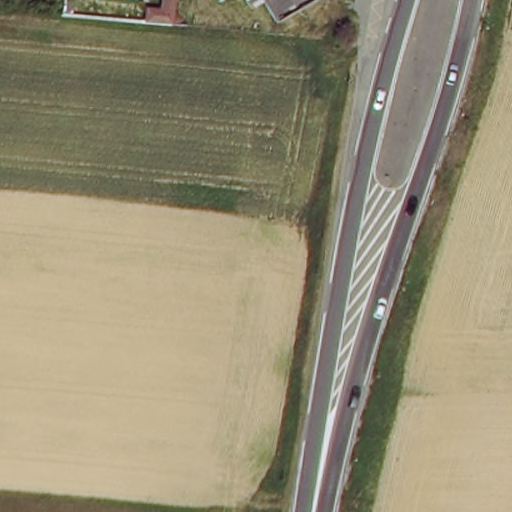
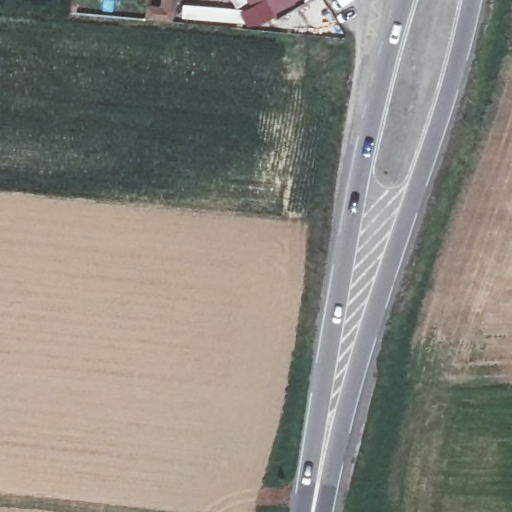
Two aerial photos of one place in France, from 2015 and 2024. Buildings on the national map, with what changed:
unchanged [(134,6),(162,10),(163,0),(177,0),(173,22),(133,19),(134,6)]
unchanged [(277,22),(265,1),(252,7),(248,0),(317,0),(277,22)]

